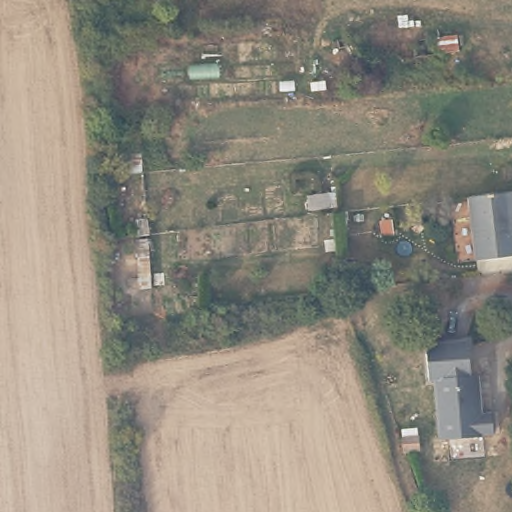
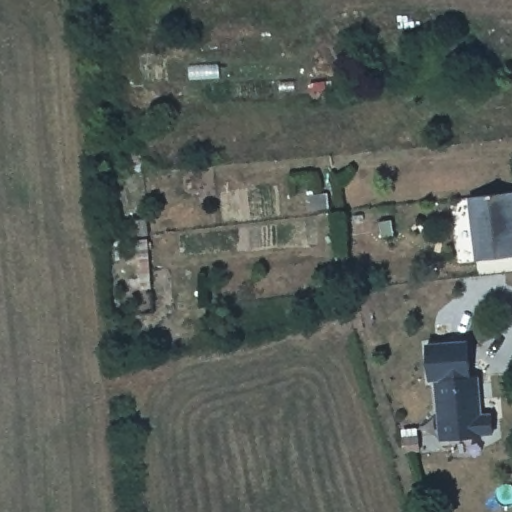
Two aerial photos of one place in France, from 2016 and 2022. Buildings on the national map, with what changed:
unchanged [(466,188),(512,184),(512,249),(473,253),(466,188)]
unchanged [(436,438),(430,374),(424,375),(421,340),(462,336),(465,371),(473,370),(477,414),(487,413),(489,432),(479,433),(479,436),(436,438)]

